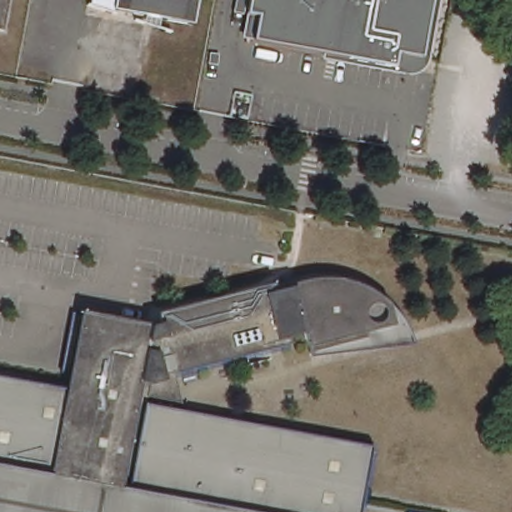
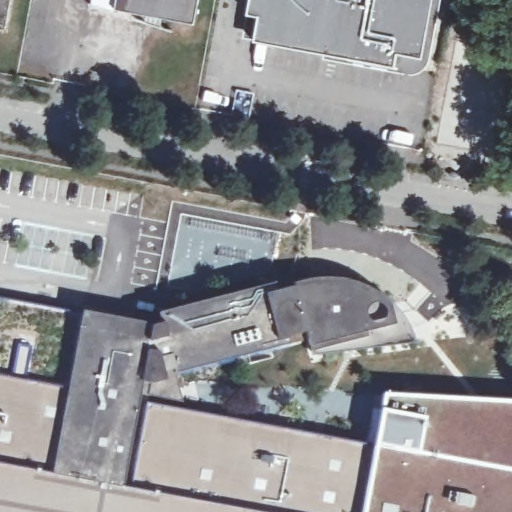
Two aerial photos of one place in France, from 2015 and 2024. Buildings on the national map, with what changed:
unchanged [(0,29),(0,0),(6,0),(0,29)]
unchanged [(108,16),(85,9),(87,0),(112,0),(195,0),(190,27),(110,11),(108,16)]
unchanged [(432,34),(427,61),(408,58),(406,71),(258,45),(262,20),(251,19),(254,0),(437,0),(431,34),(432,34)]
unchanged [(64,388),(67,372),(77,317),(145,330),(158,327),(156,319),(265,291),(263,286),(270,285),(272,290),(290,286),(289,285),(291,285),(295,283),(300,282),(305,281),(312,280),(314,280),(318,280),(322,280),(326,280),(330,280),(332,281),(336,281),(339,282),(342,282),(346,283),(350,285),(352,285),(355,286),(357,287),(358,288),(360,289),(364,290),(367,292),(370,294),(373,296),(375,297),(377,299),(383,305),(388,323),(362,330),(363,336),(306,351),(303,340),(171,373),(177,397),(173,401),(145,395),(143,403),(370,445),(359,502),(357,512),(0,512),(0,376),(64,388)]
new [(359,502),(370,445),(375,445),(383,395),(512,402),(512,512),(357,512),(359,502)]

